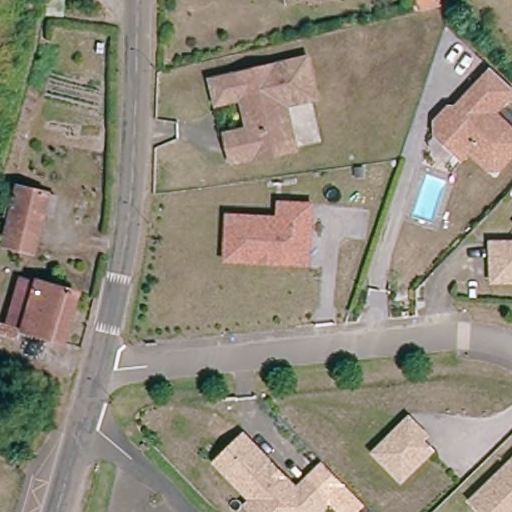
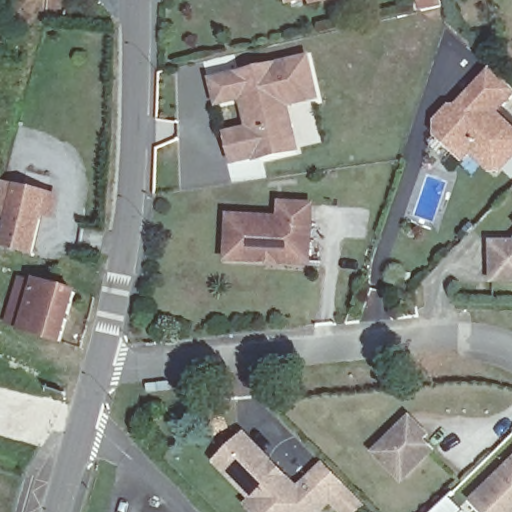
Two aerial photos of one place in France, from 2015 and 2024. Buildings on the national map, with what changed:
unchanged [(40,0),(62,0),(60,19),(38,18),(40,0)]
unchanged [(228,134),(250,129),(243,98),(219,104),(213,81),(309,58),(318,98),(287,105),(297,148),(291,149),(292,152),(263,158),(263,156),(235,163),(228,134)]
unchanged [(512,156),(498,171),(490,171),(469,152),(461,160),(435,136),(435,124),(443,114),(454,103),(457,107),(484,78),(491,70),(512,90),(512,93),(507,99),(493,113),(512,131),(512,156)]
unchanged [(7,217),(3,216),(4,208),(9,209),(15,186),(55,196),(50,215),(42,214),(32,255),(0,246),(7,217)]
unchanged [(267,263),(230,262),(231,220),(282,222),(283,207),(312,208),(310,259),(310,265),(267,263)]
unchanged [(492,244),(512,243),(512,283),(493,284),(492,244)]
unchanged [(61,342),(20,330),(5,325),(19,277),(34,282),(75,293),(61,342)]
unchanged [(405,480),(379,454),(407,426),(418,426),(428,437),(424,441),(434,452),(405,480)]
unchanged [(258,501),(221,464),(248,436),(277,465),(285,473),(302,490),(314,478),(336,500),(324,512),(257,512),(252,507),(258,501)]
unchanged [(512,461),(512,512),(488,512),(474,499),(482,491),(512,461)]

